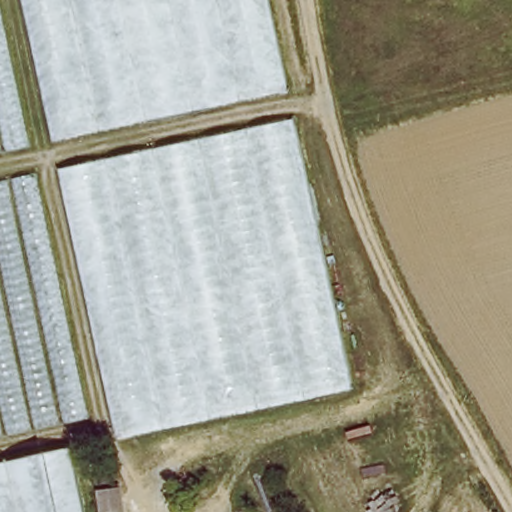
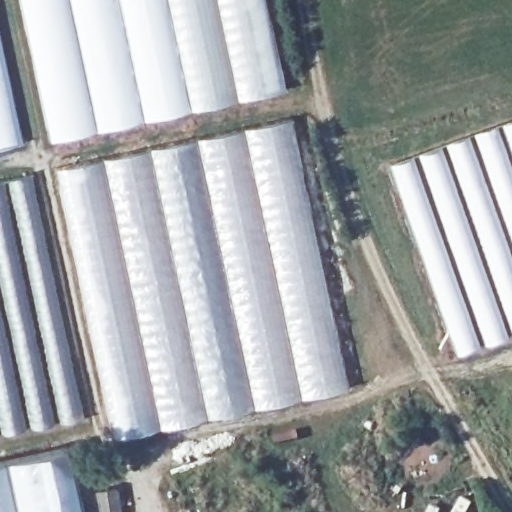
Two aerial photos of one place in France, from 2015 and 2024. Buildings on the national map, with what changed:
unchanged [(19,0),(266,0),(286,92),(50,142),(19,0)]
unchanged [(0,152),(0,25),(26,147),(0,152)]
unchanged [(350,389),(112,438),(56,170),(291,119),(350,389)]
new [(492,124),(512,119),(512,336),(453,357),(427,278),(399,202),(386,162),(492,124)]
unchanged [(0,437),(0,181),(32,174),(84,419),(0,437)]
unchanged [(82,512),(0,512),(0,464),(70,448),(82,512)]

